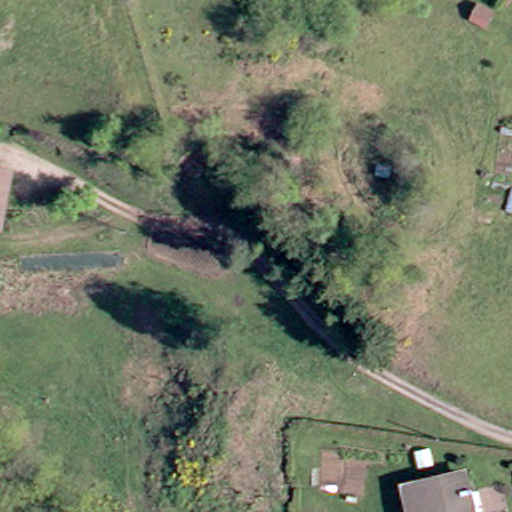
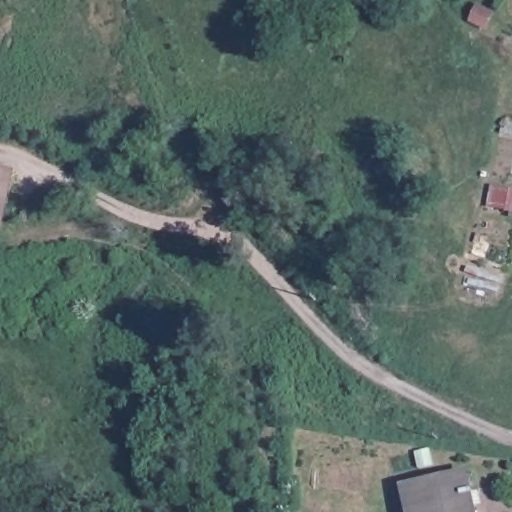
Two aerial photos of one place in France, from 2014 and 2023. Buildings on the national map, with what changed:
unchanged [(0,229),(0,165),(17,167),(8,230),(0,229)]
unchanged [(455,477),(463,512),(403,512),(397,491),(455,477)]

